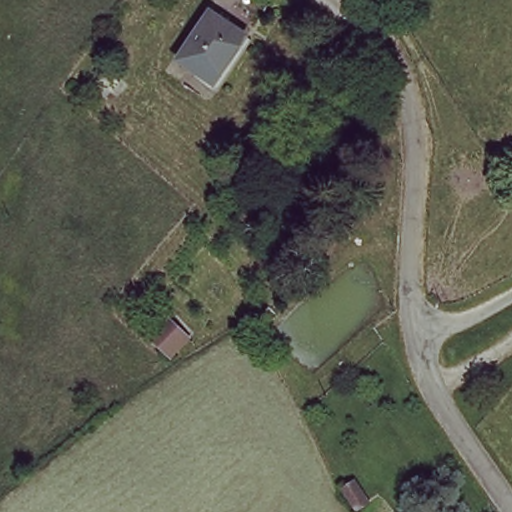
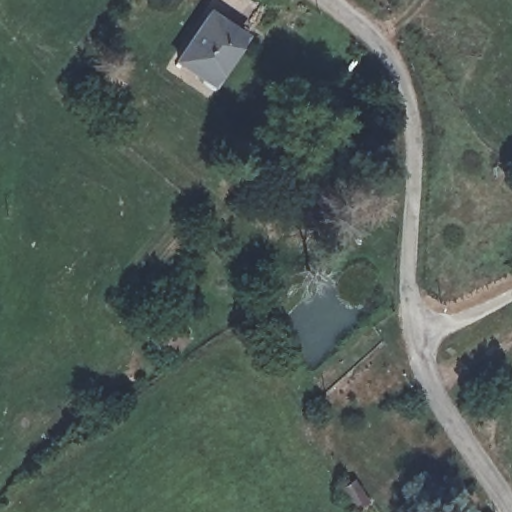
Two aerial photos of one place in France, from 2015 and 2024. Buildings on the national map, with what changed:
unchanged [(183,62),(216,16),(248,40),(213,86),(183,62)]
unchanged [(168,360),(151,342),(173,322),(191,339),(168,360)]
unchanged [(367,512),(356,512),(343,490),(351,485),(361,479),(377,506),(367,512)]

